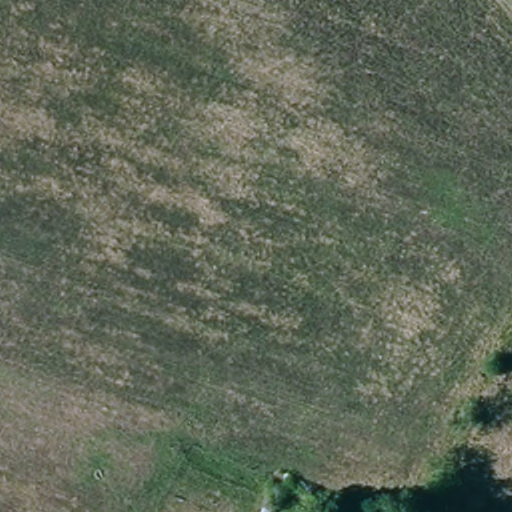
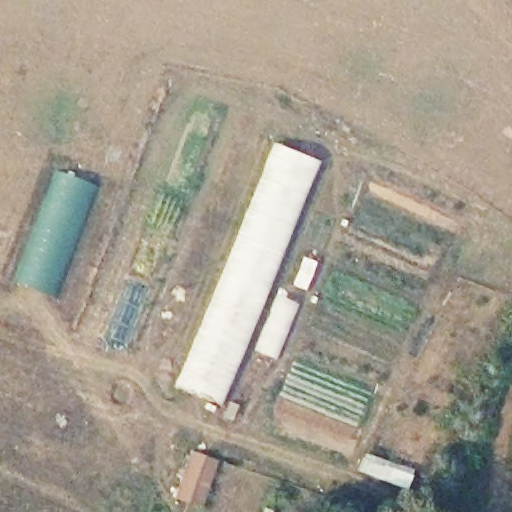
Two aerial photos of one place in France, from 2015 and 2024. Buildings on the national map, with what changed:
new [(220,404),(173,385),(272,142),(319,161),(220,404)]
new [(53,296),(12,280),(54,171),(96,187),(53,296)]
new [(191,450),(219,460),(202,507),(174,497),(191,450)]

